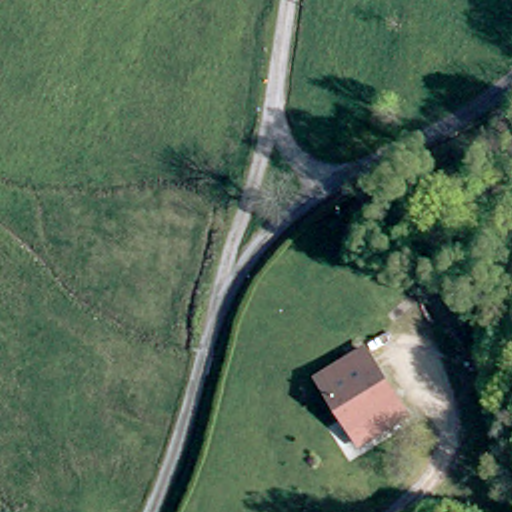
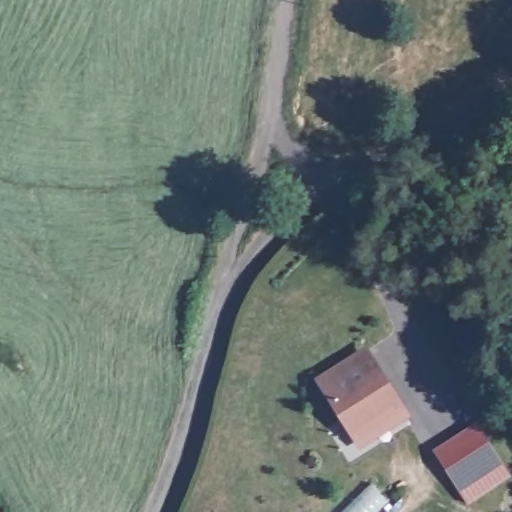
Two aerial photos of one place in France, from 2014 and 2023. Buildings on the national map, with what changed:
unchanged [(412,411),(359,446),(313,374),(367,339),(412,411)]
new [(464,504),(453,487),(430,453),(472,426),(495,460),(505,477),(464,504)]

